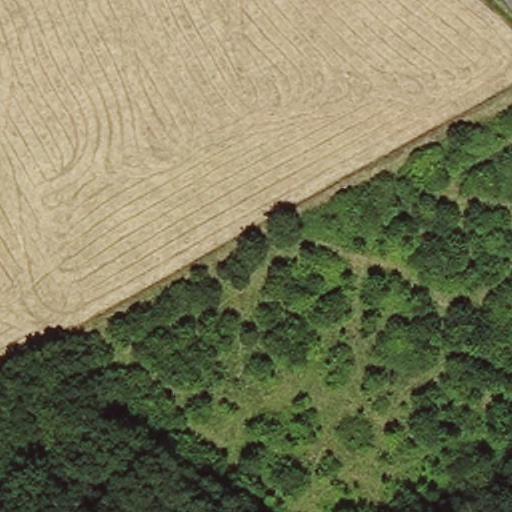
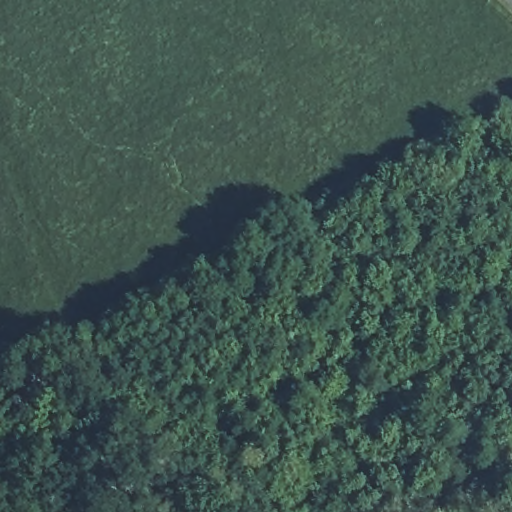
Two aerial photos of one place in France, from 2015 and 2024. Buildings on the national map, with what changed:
[]

